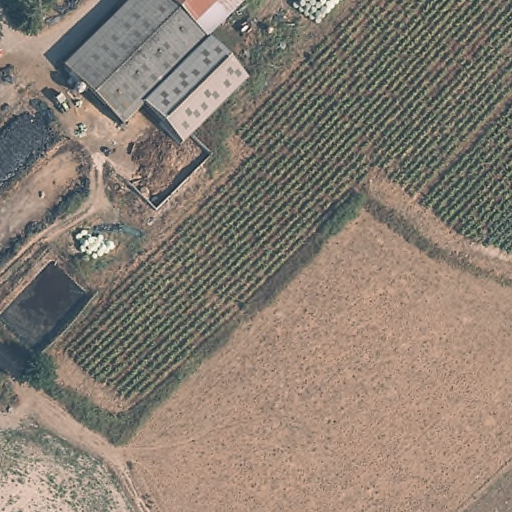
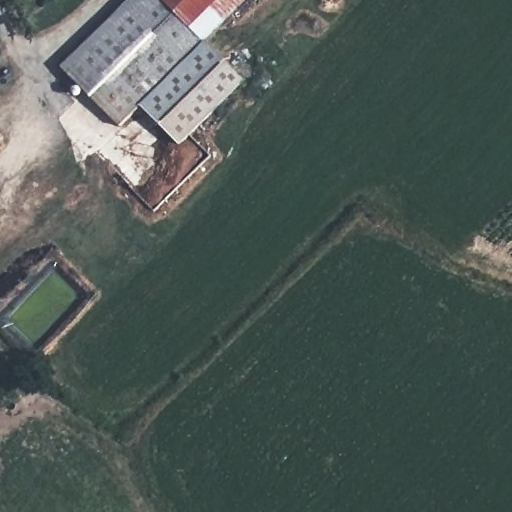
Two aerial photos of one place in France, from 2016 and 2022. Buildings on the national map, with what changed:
unchanged [(206,39),(143,104),(122,124),(66,68),(136,0),(168,0),(206,39)]
unchanged [(206,39),(168,0),(246,0),(206,39)]
unchanged [(143,104),(206,39),(242,77),(179,140),(143,104)]

